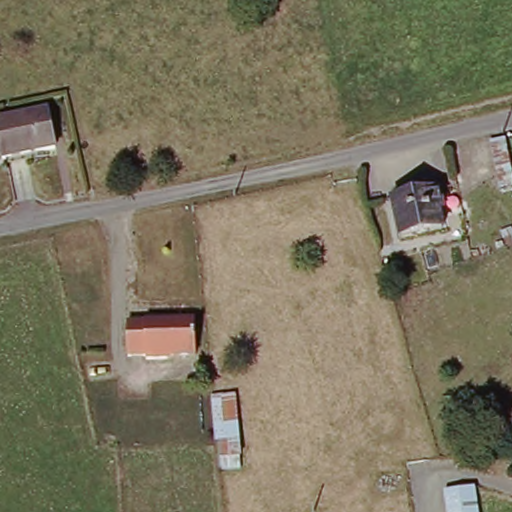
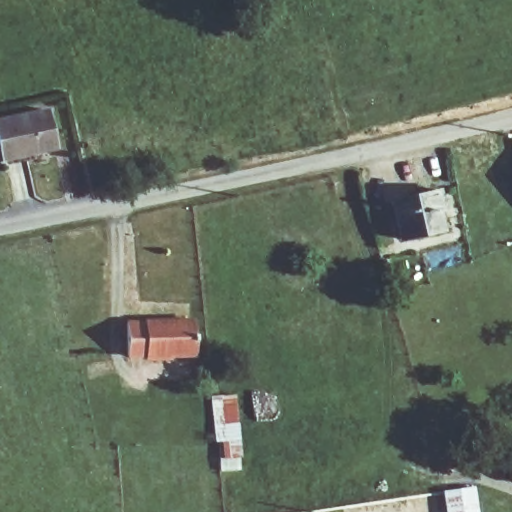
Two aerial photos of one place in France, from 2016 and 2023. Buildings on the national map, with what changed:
unchanged [(52,111),(60,149),(8,160),(1,121),(52,111)]
unchanged [(512,150),(512,187),(503,189),(493,142),(510,138),(512,150)]
unchanged [(439,190),(445,211),(439,212),(443,230),(401,241),(391,202),(439,190)]
unchanged [(197,320),(199,355),(169,357),(169,359),(149,359),(149,356),(129,357),(129,322),(197,320)]
unchanged [(239,397),(244,469),(222,471),(215,399),(239,397)]
unchanged [(477,489),(481,512),(448,512),(444,493),(477,489)]

